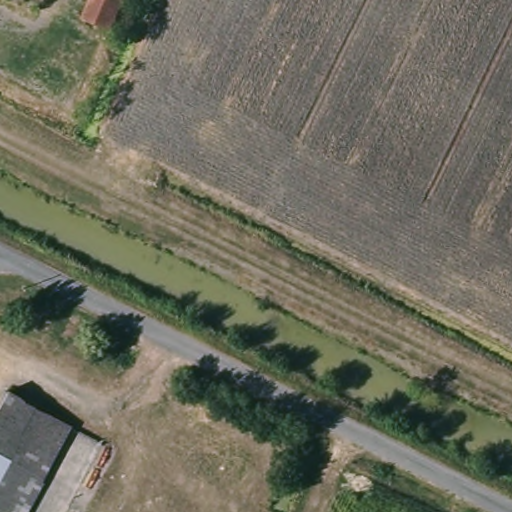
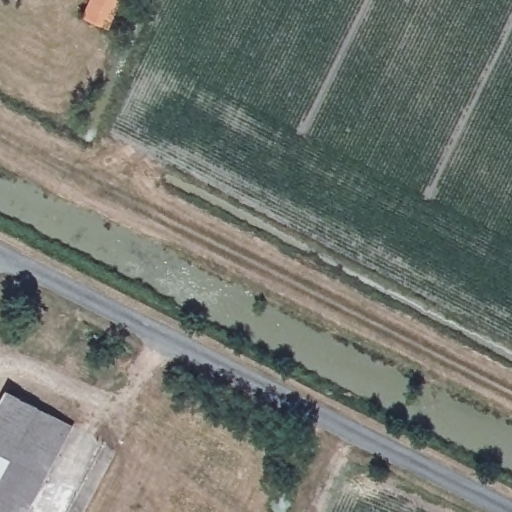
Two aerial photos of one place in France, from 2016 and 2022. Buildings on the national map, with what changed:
unchanged [(116,29),(84,14),(91,0),(130,0),(116,29)]
unchanged [(40,415),(1,512),(0,512),(0,397),(40,415)]
unchanged [(15,512),(1,512),(40,415),(55,422),(15,512)]
unchanged [(32,512),(15,512),(55,422),(69,427),(32,512)]

